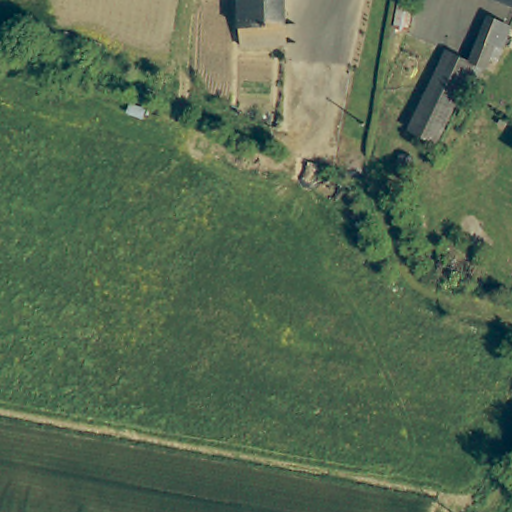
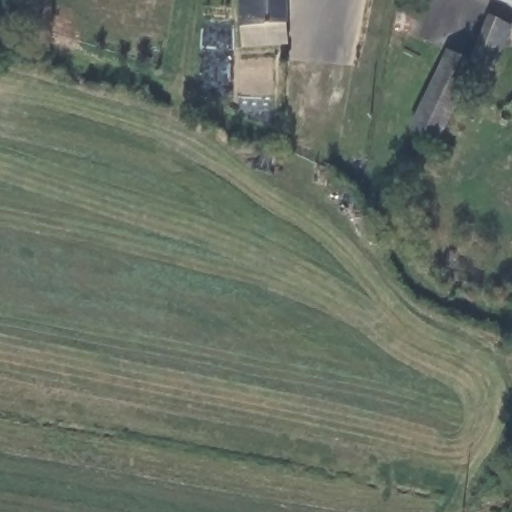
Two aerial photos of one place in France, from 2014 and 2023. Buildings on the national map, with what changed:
unchanged [(287,36),(245,35),(243,0),(286,0),(287,36)]
unchanged [(491,0),(512,0),(512,9),(491,0)]
unchanged [(447,55),(470,65),(491,22),(512,32),(497,63),(492,61),(486,76),(482,75),(474,90),(464,85),(458,96),(434,146),(418,135),(411,131),(447,55)]
unchanged [(404,153),(405,152),(406,152),(407,153),(408,153),(410,153),(412,154),(412,155),(413,156),(414,157),(414,158),(415,159),(415,160),(415,161),(415,163),(415,164),(415,165),(415,166),(414,167),(414,168),(413,169),(412,169),(411,170),(410,170),(408,170),(407,171),(406,171),(405,170),(404,170),(403,170),(402,169),(401,169),(400,168),(399,167),(399,166),(398,165),(398,164),(397,163),(397,162),(397,160),(397,159),(397,158),(398,157),(398,156),(399,155),(400,154),(401,154),(402,153),(403,153),(404,153)]
unchanged [(305,159),(306,159),(307,158),(308,158),(310,158),(311,159),(312,159),(313,159),(314,160),(316,161),(317,162),(317,163),(318,164),(319,166),(319,167),(319,168),(319,170),(319,171),(319,173),(318,174),(317,175),(316,176),(315,177),(314,178),(313,179),(312,179),(310,179),(309,179),(307,179),(306,179),(305,179),(303,178),(302,177),(301,176),(300,175),(299,173),(298,172),(298,171),(298,169),(298,167),(298,166),(299,165),(299,164),(300,163),(301,162),(301,161),(303,160),(304,159),(305,159)]

